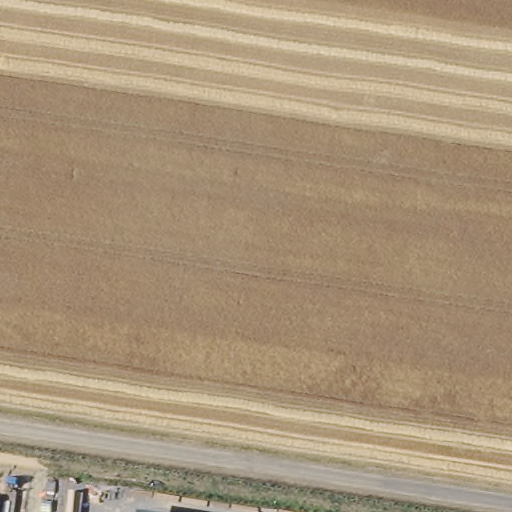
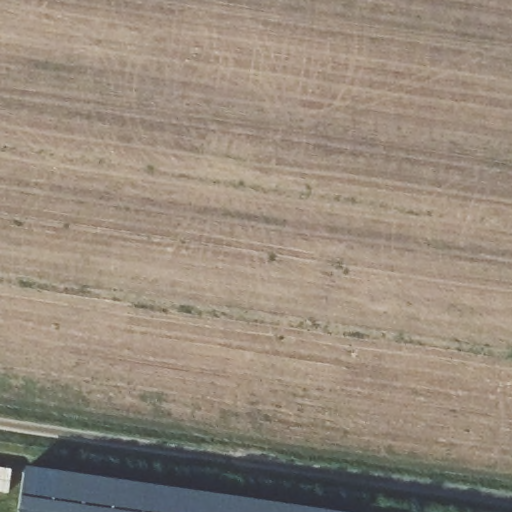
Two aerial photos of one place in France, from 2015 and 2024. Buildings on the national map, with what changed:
new [(49,495),(49,497),(139,511),(138,512),(19,512),(25,469),(52,473),(49,495)]
new [(139,511),(49,497),(52,473),(312,512),(138,512),(139,511)]

